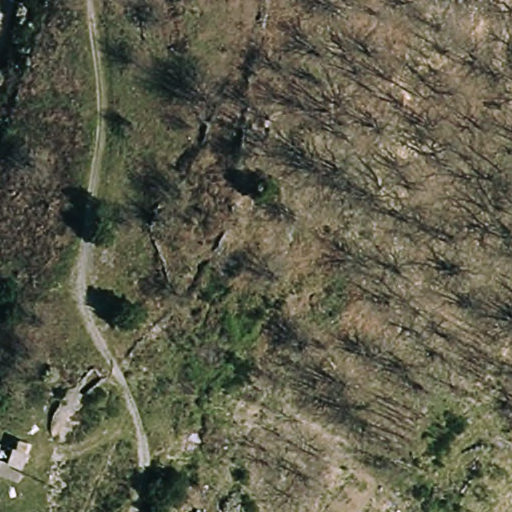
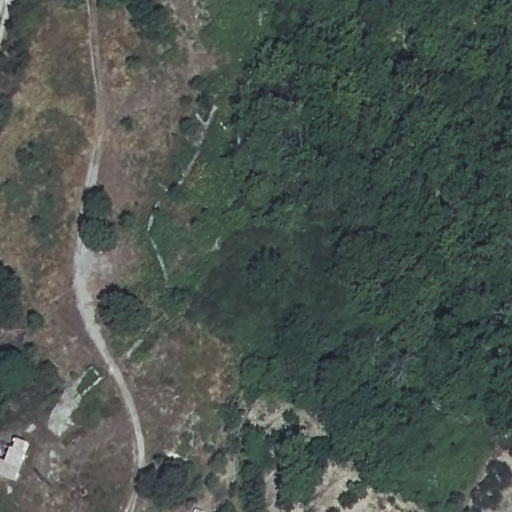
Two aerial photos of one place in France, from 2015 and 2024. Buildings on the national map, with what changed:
unchanged [(4,455),(15,457),(21,438),(35,440),(23,479),(0,472),(0,467),(4,455)]

